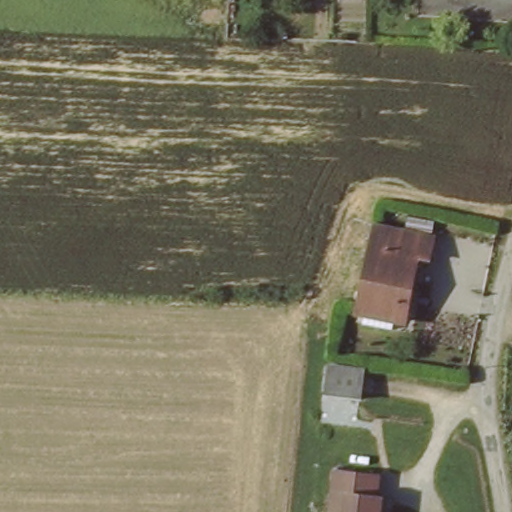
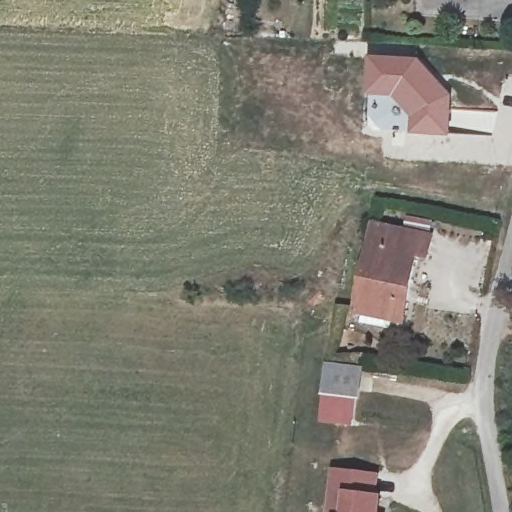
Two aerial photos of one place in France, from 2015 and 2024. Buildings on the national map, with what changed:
new [(369,56),(420,57),(453,95),(452,110),(450,138),(409,135),(409,116),(394,99),(365,96),(369,56)]
unchanged [(411,321),(360,319),(369,231),(433,236),(430,260),(416,259),(411,321)]
unchanged [(364,370),(362,401),(332,399),(333,368),(364,370)]
unchanged [(331,474),(373,476),(372,497),(377,498),(376,512),(329,512),(331,474)]

